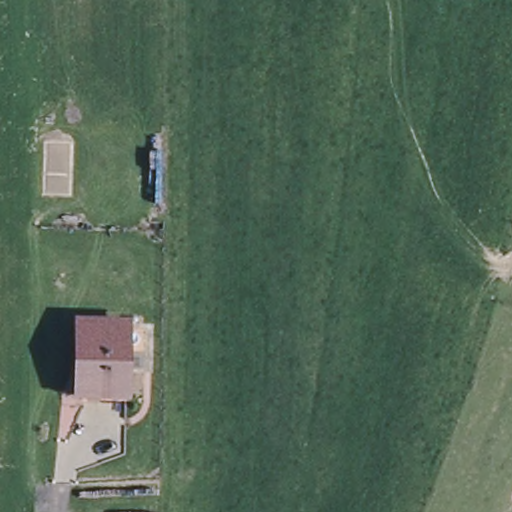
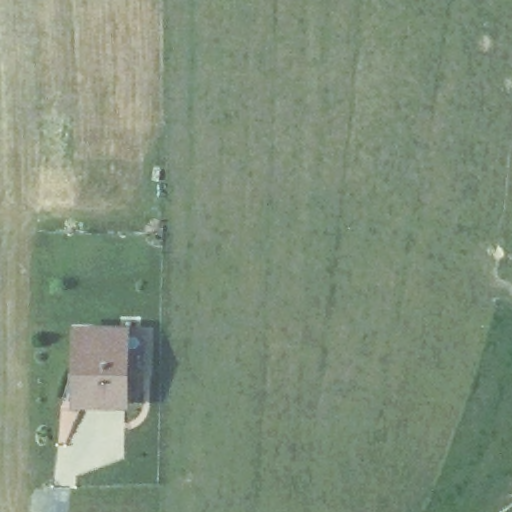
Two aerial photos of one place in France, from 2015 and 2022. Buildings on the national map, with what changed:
unchanged [(125,330),(125,405),(80,405),(80,373),(74,373),(75,330),(125,330)]

